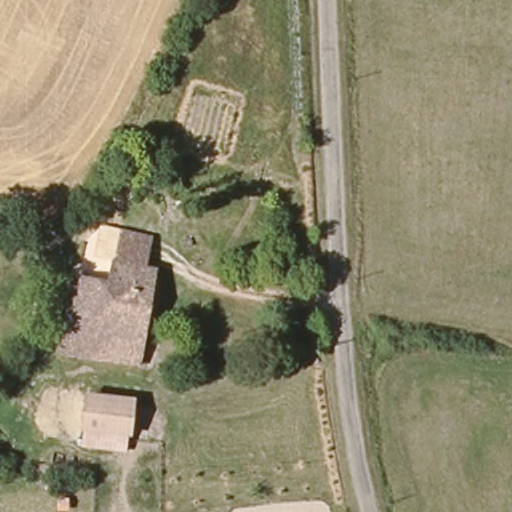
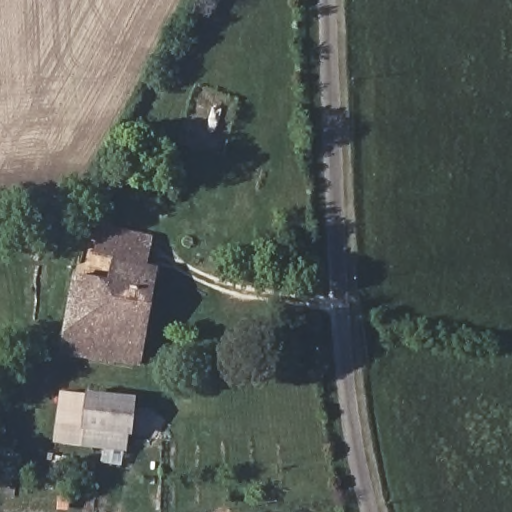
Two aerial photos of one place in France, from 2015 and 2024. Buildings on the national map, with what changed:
unchanged [(79,291),(80,279),(119,285),(106,283),(111,260),(94,257),(100,225),(152,235),(145,267),(124,263),(162,270),(146,370),(66,360),(79,291)]
new [(60,391),(86,394),(86,402),(82,429),(80,447),(54,443),(60,391)]
unchanged [(82,429),(126,435),(130,408),(86,402),(86,394),(86,392),(135,397),(132,435),(128,435),(126,452),(80,447),(82,429)]
unchanged [(82,429),(86,402),(130,408),(126,435),(82,429)]

